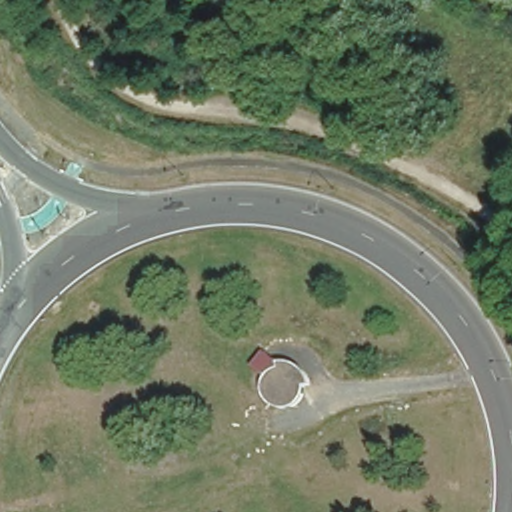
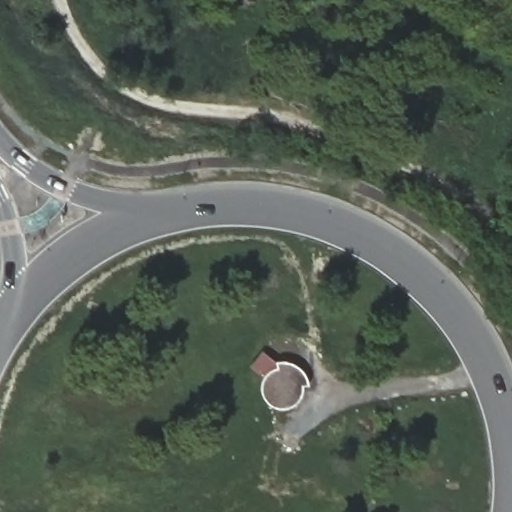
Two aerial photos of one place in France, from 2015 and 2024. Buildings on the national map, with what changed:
unchanged [(282,352),(283,352),(285,352),(286,352),(287,352),(288,352),(290,352),(291,352),(292,352),(294,352),(295,352),(296,352),(297,353),(298,353),(300,354),(300,355),(301,355),(302,356),(303,356),(304,357),(305,357),(306,358),(307,359),(307,360),(308,361),(309,362),(310,362),(310,363),(311,365),(311,366),(312,367),(313,368),(313,370),(313,371),(314,372),(314,373),(315,374),(315,375),(310,376),(310,378),(310,381),(309,383),(308,385),(307,387),(306,390),(305,392),(303,393),(301,395),(299,396),(297,397),(295,398),(292,398),(290,399),(287,399),(285,398),(282,398),(280,397),(278,396),(276,395),(274,393),(272,391),(271,390),(270,387),(269,385),(268,382),(268,380),(268,377),(268,375),(268,373),(270,371),(270,368),(271,366),(273,364),(275,362),(277,361),(279,360),(281,358),(283,358),(282,352)]

